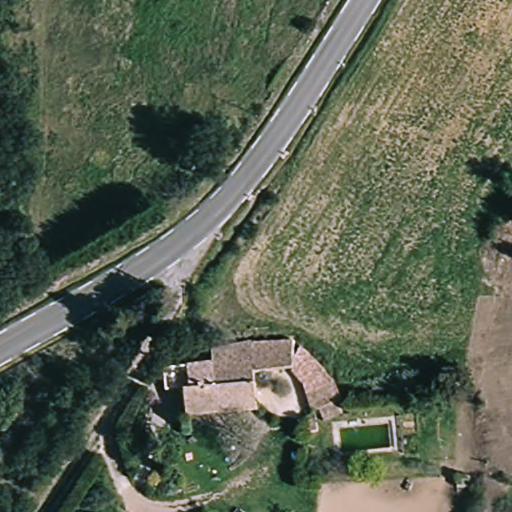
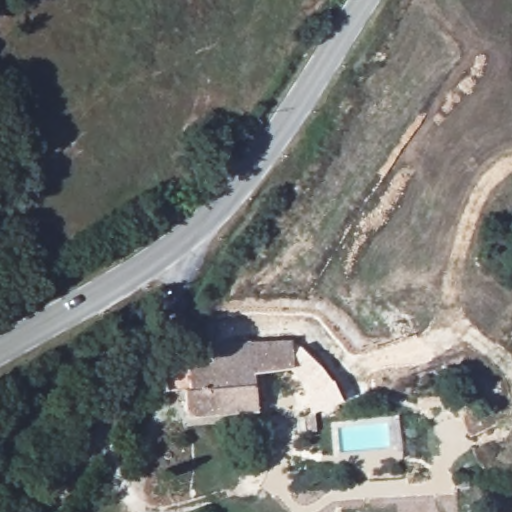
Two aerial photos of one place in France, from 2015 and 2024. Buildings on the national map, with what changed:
unchanged [(185,391),(188,363),(211,360),(213,353),(254,343),(292,340),(293,355),(272,357),(274,373),(256,375),(259,410),(187,422),(185,391)]
unchanged [(311,376),(295,362),(306,349),(322,365),(311,376)]

